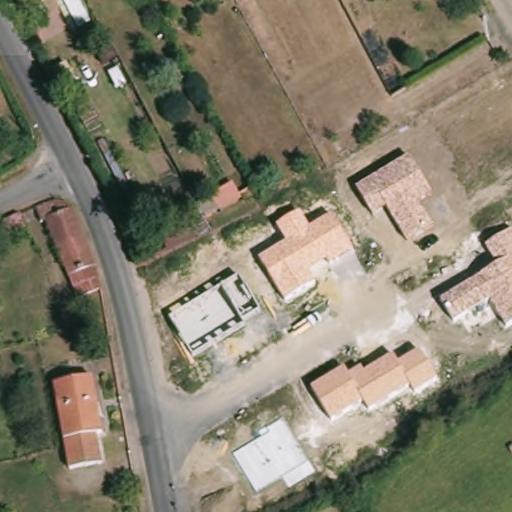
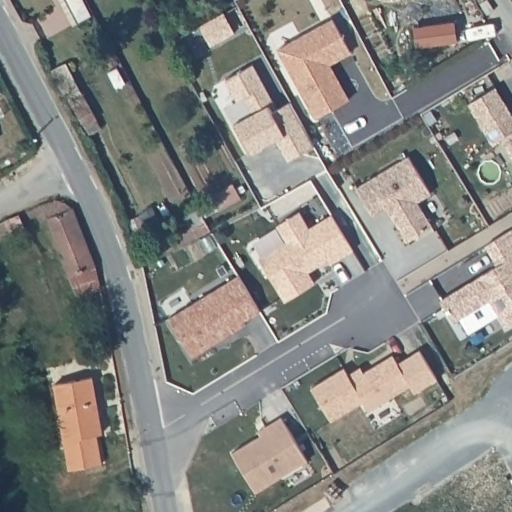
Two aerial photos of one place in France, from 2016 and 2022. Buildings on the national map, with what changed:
unchanged [(77,14),(64,22),(52,0),(69,0),(77,14)]
new [(278,50),(333,19),(352,52),(329,66),(348,99),(316,118),(278,50)]
new [(236,66),(257,104),(253,107),(256,113),(273,103),(297,147),(271,161),(259,139),(233,154),(217,125),(236,114),(228,98),(221,101),(210,81),(236,66)]
new [(512,92),(512,144),(509,147),(484,106),(511,90),(512,92)]
unchanged [(433,195),(418,203),(433,227),(408,244),(385,208),(372,215),(356,189),(408,155),(433,195)]
unchanged [(74,293),(38,204),(63,192),(94,266),(97,285),(74,293)]
unchanged [(192,229),(179,236),(166,212),(180,205),(192,229)]
unchanged [(310,228),(331,216),(352,251),(329,266),(326,261),(309,272),(317,285),(286,303),(259,259),(285,242),(275,227),(301,212),(310,228)]
unchanged [(489,301),(454,323),(439,301),(497,266),(484,245),(512,228),(512,329),(508,332),(489,301)]
unchanged [(261,312),(245,322),(247,325),(194,357),(169,317),(239,274),(261,312)]
unchanged [(348,373),(360,366),(364,372),(393,355),(399,363),(419,350),(436,380),(413,394),(409,388),(368,412),(361,401),(329,421),(309,389),(344,368),(348,373)]
unchanged [(101,433),(94,434),(100,466),(69,471),(54,385),(92,379),(101,433)]
unchanged [(313,466),(287,483),(281,473),(255,488),(231,449),(260,433),(256,427),(281,414),(313,466)]

